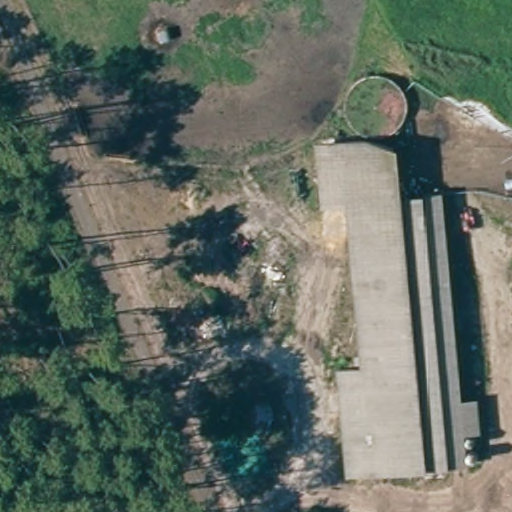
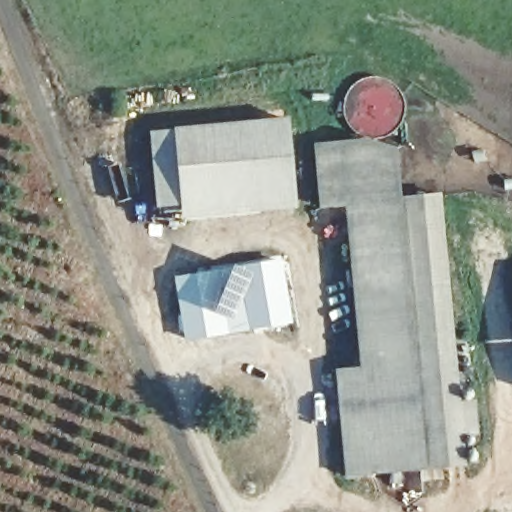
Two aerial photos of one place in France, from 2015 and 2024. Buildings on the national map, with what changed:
new [(182,206),(156,207),(151,132),(176,131),(176,129),(290,119),(298,209),(184,219),(182,206)]
unchanged [(483,435),(463,436),(466,469),(348,476),(342,368),(361,366),(347,199),(322,200),(317,143),(370,135),(400,145),(405,195),(445,191),(461,398),(480,397),(483,435)]
new [(283,257),(295,323),(184,342),(172,275),(283,257)]

